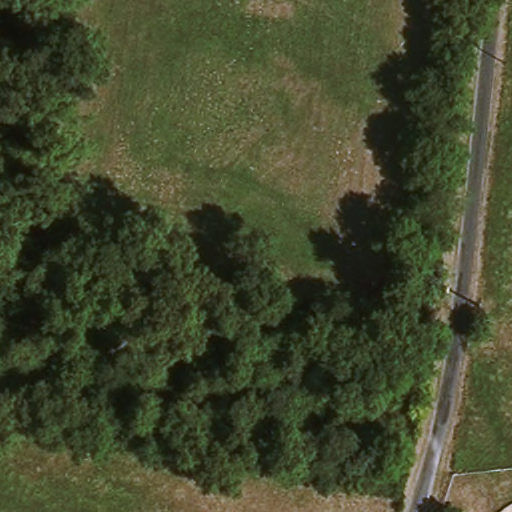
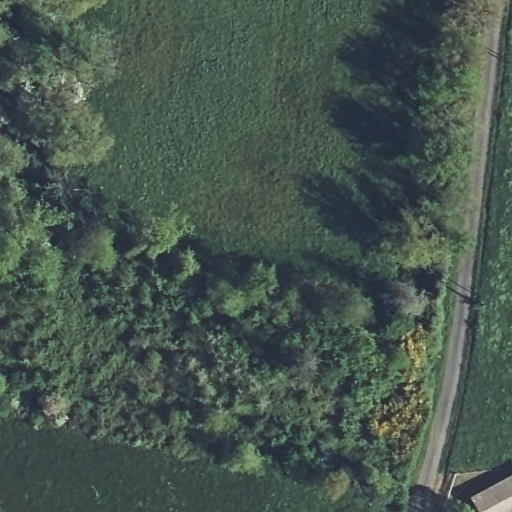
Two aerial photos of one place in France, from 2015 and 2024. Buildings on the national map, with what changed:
new [(506,512),(476,512),(469,497),(512,475),(512,509),(506,512)]

